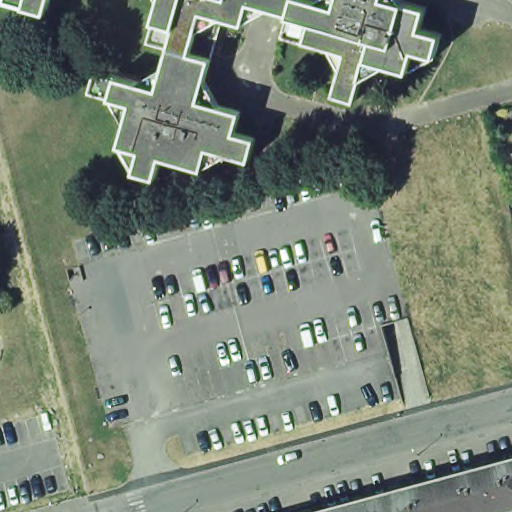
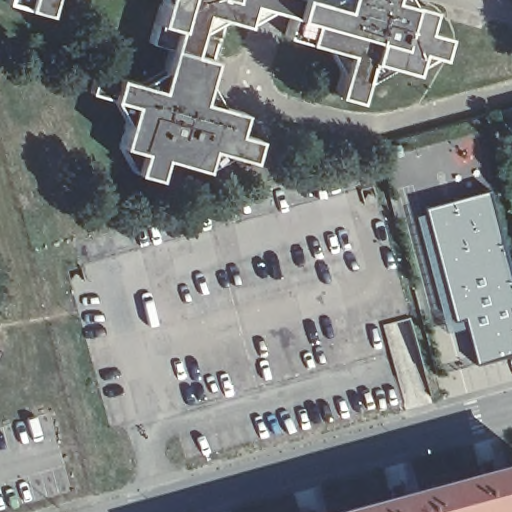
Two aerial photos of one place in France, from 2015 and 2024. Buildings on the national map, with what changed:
unchanged [(46,14),(5,2),(5,0),(50,0),(46,14)]
unchanged [(426,9),(421,31),(442,35),(435,59),(412,72),(369,60),(358,97),(357,101),(336,95),(347,54),(285,37),(291,15),(250,5),(244,26),(222,20),(200,102),(242,113),(235,135),(257,140),(251,160),(209,149),(203,170),(162,158),(156,178),(132,172),(119,148),(132,104),(90,93),(96,73),(159,90),(170,49),(149,42),(161,0),(312,0),(334,6),(337,6),(339,0),(391,0),(426,9)]
new [(491,192),(512,270),(512,358),(478,367),(466,321),(456,324),(425,211),(491,192)]
unchanged [(480,473),(494,470),(496,480),(497,482),(512,478),(512,512),(451,512),(447,496),(484,485),(484,484),(480,473)]
unchanged [(394,509),(392,499),(405,496),(407,505),(408,507),(447,496),(451,512),(391,512),(395,511),(394,509)]

